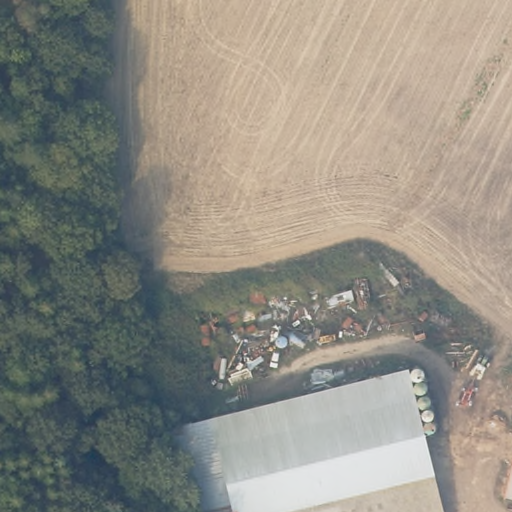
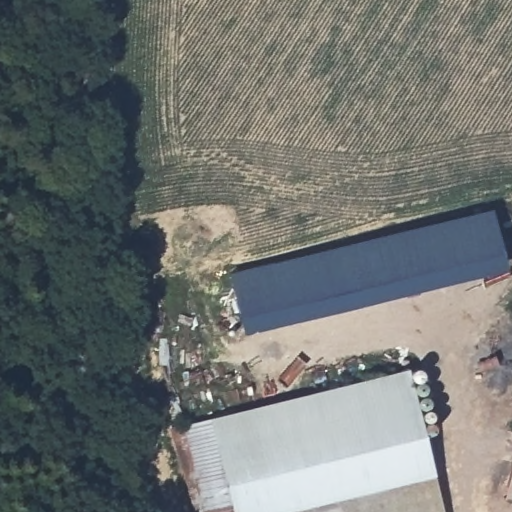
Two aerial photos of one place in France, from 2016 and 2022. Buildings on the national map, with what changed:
new [(229,273),(494,208),(509,269),(245,334),(229,273)]
unchanged [(437,475),(446,512),(239,512),(216,422),(411,372),(437,475)]
unchanged [(171,429),(213,421),(235,512),(195,512),(171,429)]
unchanged [(510,499),(512,488),(512,499),(510,499)]

